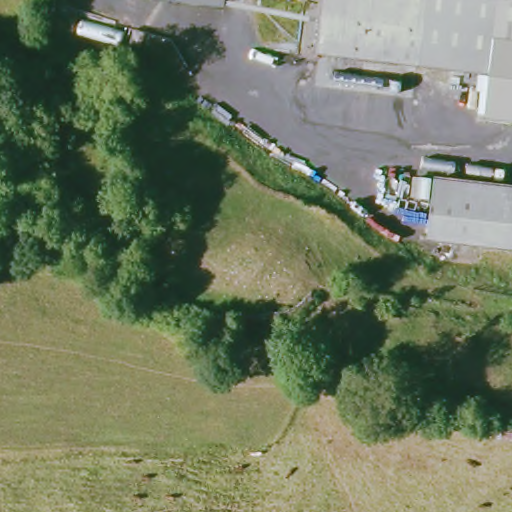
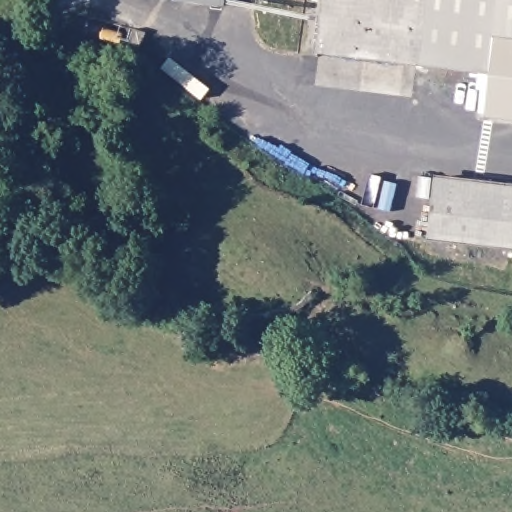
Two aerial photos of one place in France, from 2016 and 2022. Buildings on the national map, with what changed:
unchanged [(410,55),(313,37),(320,0),(512,0),(512,81),(409,65),(410,55)]
unchanged [(408,177),(512,193),(512,252),(398,235),(408,177)]

